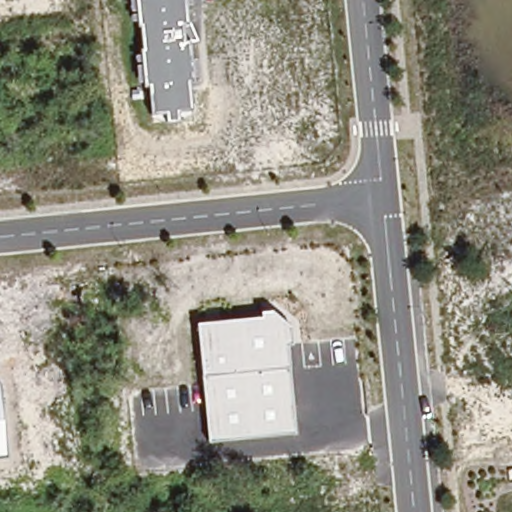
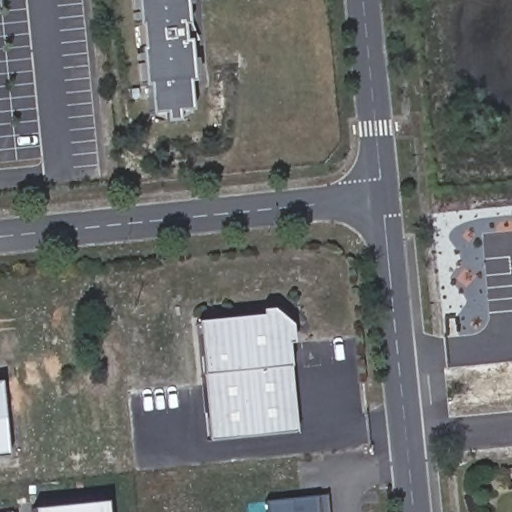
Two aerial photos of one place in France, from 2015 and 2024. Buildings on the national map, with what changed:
unchanged [(192,5),(187,6),(188,23),(190,23),(197,40),(190,42),(192,59),(197,59),(199,76),(193,77),(194,80),(188,81),(192,109),(177,110),(178,119),(168,120),(166,111),(153,113),(150,85),(145,85),(144,81),(139,82),(138,65),(143,64),(143,60),(137,61),(136,54),(141,54),(141,49),(143,49),(140,24),(138,25),(138,19),(133,20),(131,13),(136,13),(136,10),(131,10),(131,0),(191,0),(192,5)]
unchanged [(294,432),(208,441),(201,374),(195,322),(261,315),(260,310),(270,309),(290,325),(291,343),(286,344),(288,366),(294,432)]
unchanged [(0,456),(0,391),(7,455),(0,456)]
new [(317,512),(267,512),(266,501),(315,497),(317,512)]
new [(106,512),(32,512),(32,508),(104,502),(106,512)]

